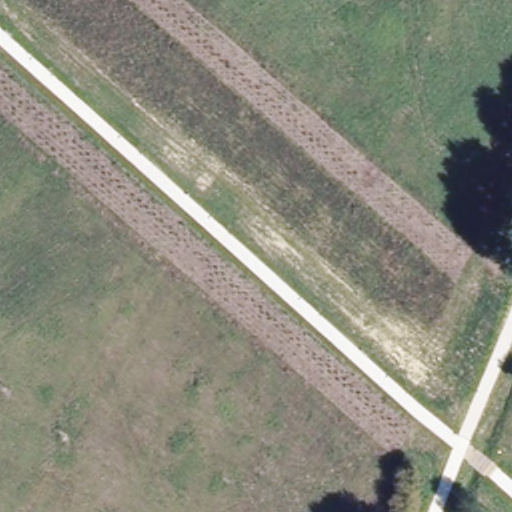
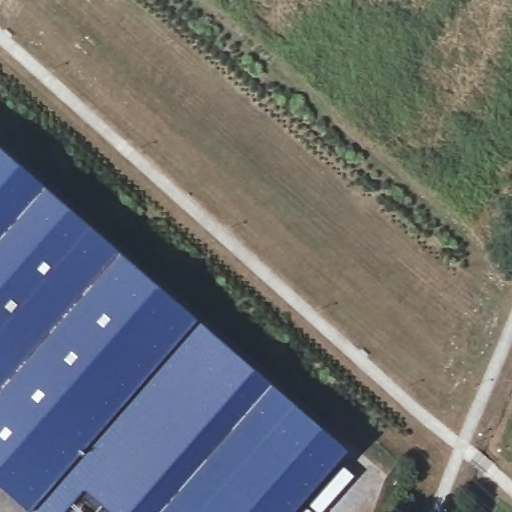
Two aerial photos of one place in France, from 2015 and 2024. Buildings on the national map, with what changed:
new [(347,447),(290,512),(36,512),(0,480),(0,146),(347,447)]

